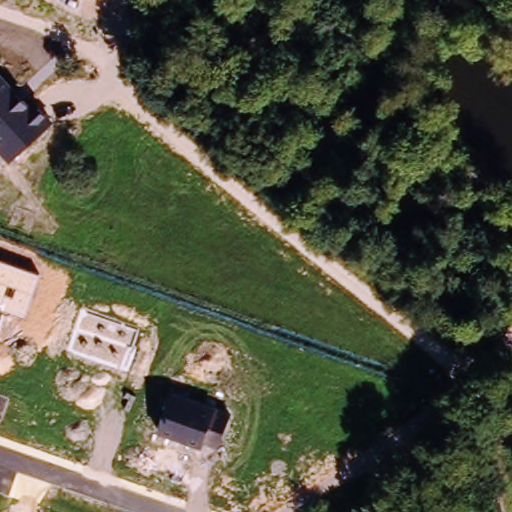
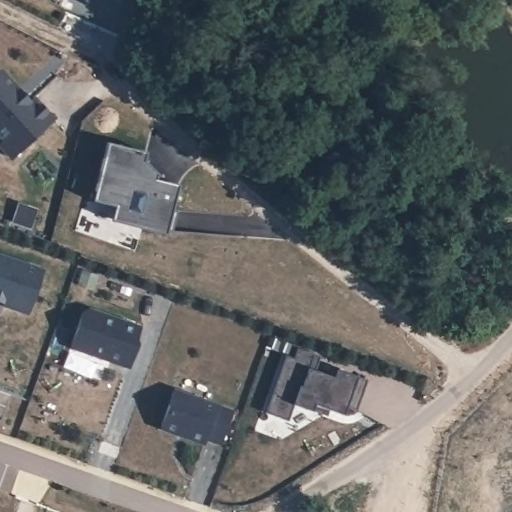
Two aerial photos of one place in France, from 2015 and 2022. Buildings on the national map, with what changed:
unchanged [(52,122),(12,160),(0,148),(0,144),(4,140),(0,136),(0,74),(4,71),(52,122)]
new [(107,143),(146,153),(144,162),(157,175),(156,180),(179,186),(166,235),(142,229),(143,224),(116,217),(119,208),(92,201),(107,143)]
unchanged [(27,312),(0,304),(0,258),(40,270),(27,312)]
unchanged [(70,348),(83,311),(91,309),(141,325),(129,369),(70,348)]
new [(286,355),(294,358),(297,348),(321,357),(315,371),(335,378),(337,370),(367,381),(357,411),(347,407),(344,416),(315,405),(312,412),(294,405),(289,421),(265,413),(286,355)]
unchanged [(232,412),(222,444),(206,439),(204,445),(161,429),(171,389),(232,412)]

